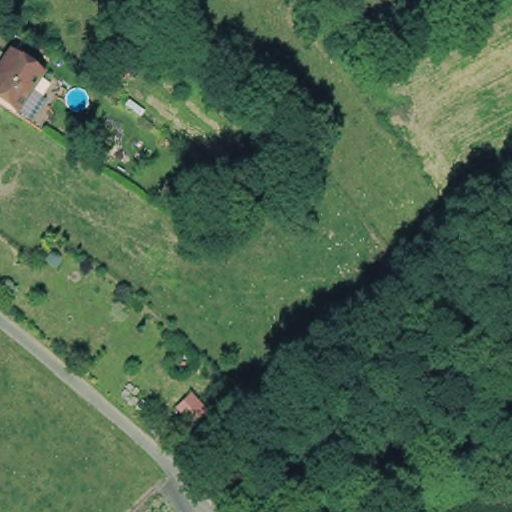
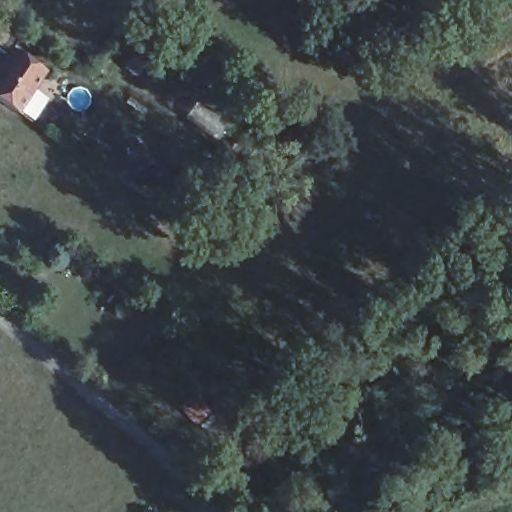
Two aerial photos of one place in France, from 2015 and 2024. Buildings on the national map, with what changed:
unchanged [(10,50),(41,71),(15,110),(0,100),(0,65),(10,50)]

